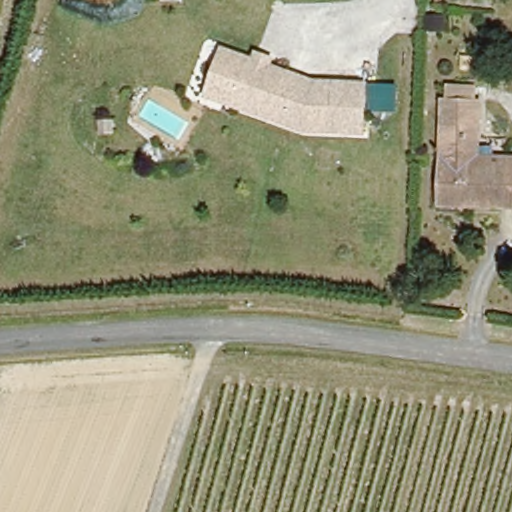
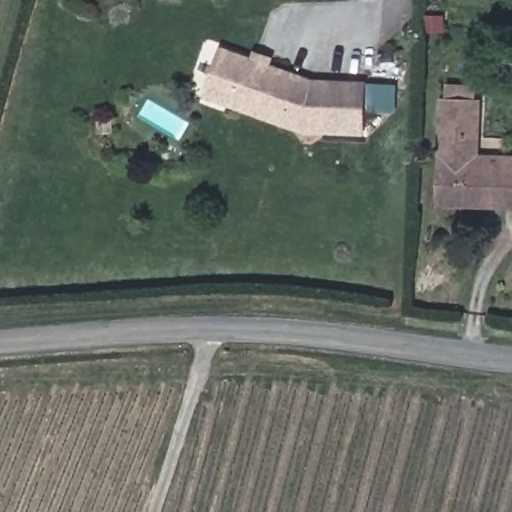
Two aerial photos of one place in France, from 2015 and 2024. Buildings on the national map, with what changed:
unchanged [(285,125),(207,98),(223,54),(254,64),(256,55),(271,60),(268,69),(301,80),(285,125)]
unchanged [(307,133),(285,125),(301,80),(315,85),(327,86),(326,134),(307,133)]
unchanged [(367,91),(366,138),(326,134),(327,86),(367,91)]
unchanged [(437,194),(439,104),(479,105),(478,131),(471,131),(470,165),(500,166),(501,155),(512,156),(512,203),(497,203),(497,205),(461,205),(461,204),(437,203),(437,194)]

